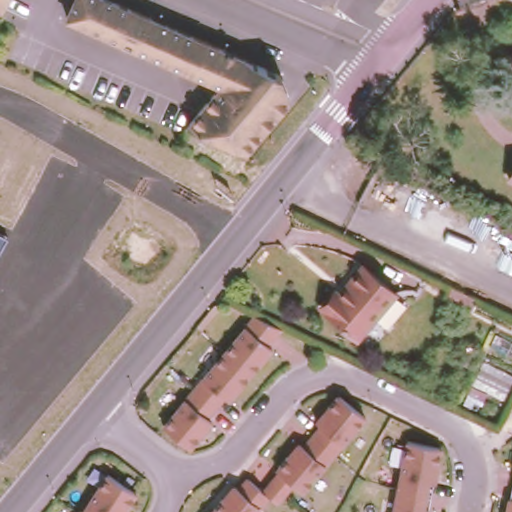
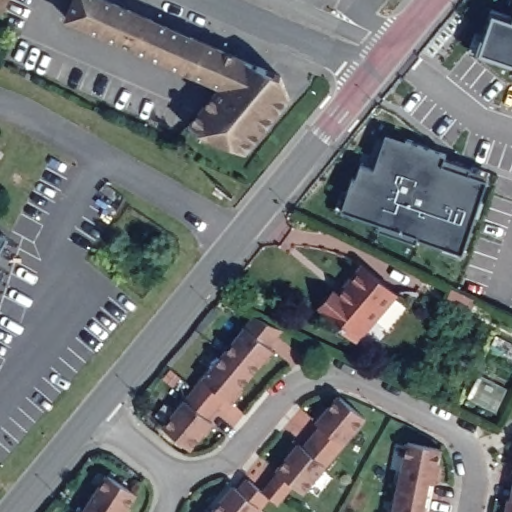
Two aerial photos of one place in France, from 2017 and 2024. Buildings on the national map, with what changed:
unchanged [(0,15),(0,0),(10,0),(0,15)]
unchanged [(70,0),(109,0),(280,76),(287,99),(242,155),(185,130),(220,90),(57,22),(70,0)]
new [(470,55),(488,11),(503,16),(510,0),(512,0),(512,71),(470,55)]
new [(485,172),(455,257),(334,205),(391,129),(485,172)]
demolished [(505,172),(507,168),(512,157),(512,176),(505,172)]
unchanged [(0,241),(0,219),(8,224),(0,241)]
unchanged [(322,306),(337,287),(341,290),(350,280),(347,278),(362,261),(395,288),(357,333),(322,306)]
unchanged [(179,400),(182,403),(200,383),(197,380),(241,331),(245,332),(253,320),(275,335),(264,346),(271,352),(228,404),(223,401),(207,421),(212,426),(190,451),(157,426),(179,400)]
unchanged [(303,490),(295,483),(275,505),(267,499),(255,512),(209,512),(230,486),(239,491),(243,485),(258,495),(276,473),(273,471),(294,446),(298,450),(316,428),(310,425),(335,396),(363,418),(303,490)]
unchanged [(430,512),(390,512),(403,445),(442,450),(430,512)]
unchanged [(503,512),(512,466),(512,512),(503,512)]
unchanged [(137,494),(125,512),(82,512),(105,476),(137,494)]

